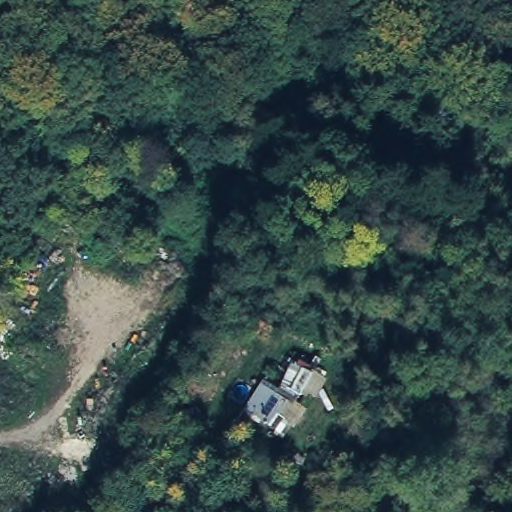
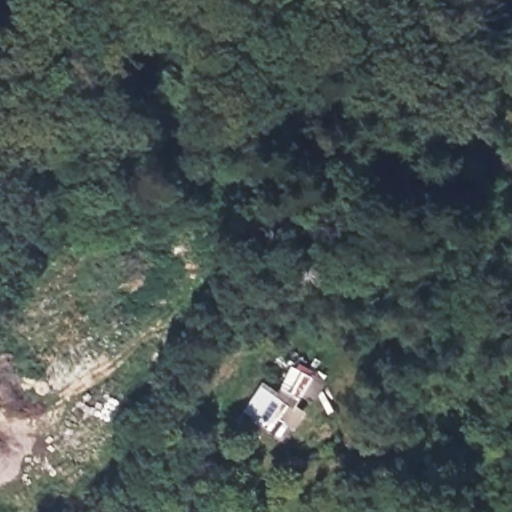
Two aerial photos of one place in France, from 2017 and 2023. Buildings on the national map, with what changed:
unchanged [(244,408),(265,380),(279,390),(297,360),(327,377),(315,397),(307,393),(305,395),(300,393),(295,401),(302,406),(281,439),(244,408)]

